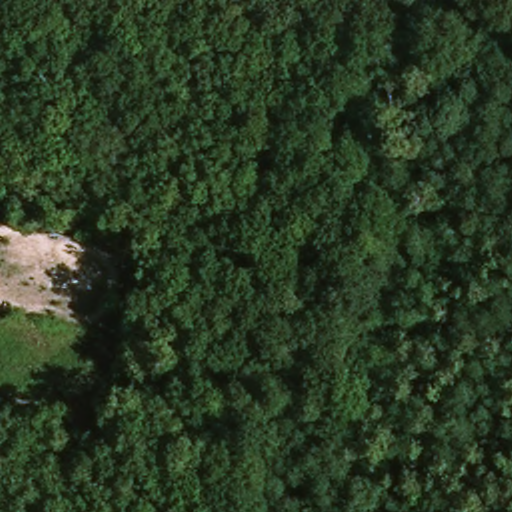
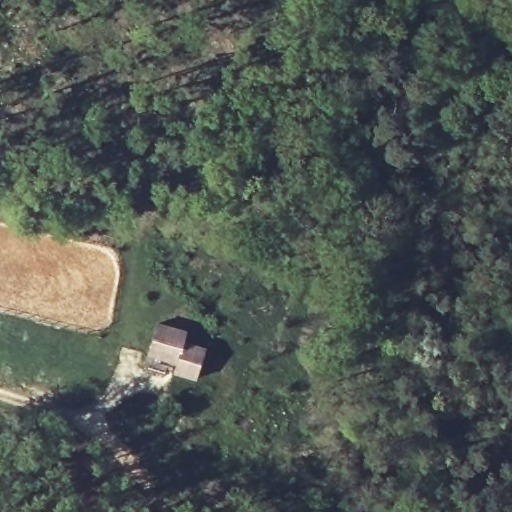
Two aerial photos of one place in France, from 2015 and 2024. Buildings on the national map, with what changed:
new [(162,322),(191,331),(187,341),(210,348),(200,377),(177,370),(181,360),(152,351),(162,322)]

